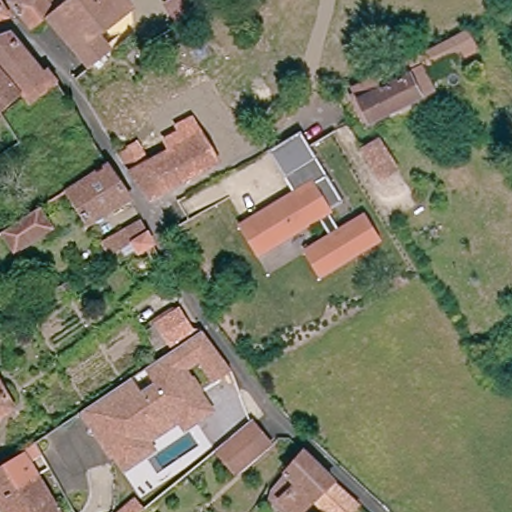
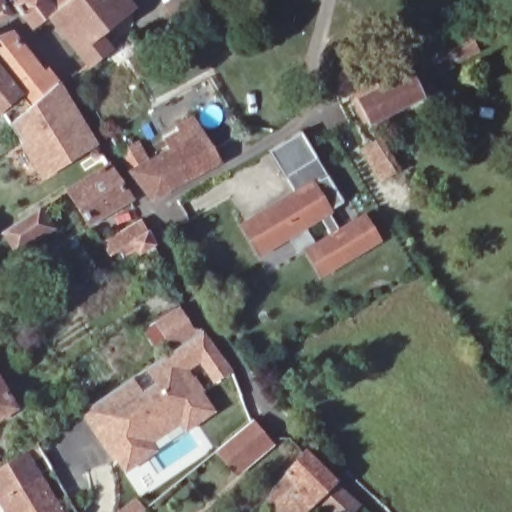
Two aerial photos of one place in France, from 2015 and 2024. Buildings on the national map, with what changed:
unchanged [(65,0),(44,16),(27,30),(14,12),(3,16),(0,17),(0,0),(65,0)]
unchanged [(93,35),(105,50),(85,66),(44,16),(65,0),(121,0),(128,8),(93,35)]
unchanged [(175,24),(163,5),(171,0),(208,0),(209,2),(175,24)]
unchanged [(466,31),(475,49),(466,54),(462,46),(425,65),(409,74),(420,96),(370,121),(352,86),(419,52),(420,55),(466,31)]
unchanged [(10,33),(42,72),(49,67),(60,81),(33,103),(23,91),(0,65),(0,37),(10,33)]
unchanged [(22,92),(0,111),(0,67),(22,92)]
new [(41,178),(10,123),(33,103),(60,81),(97,145),(41,178)]
unchanged [(175,126),(193,117),(218,162),(219,164),(152,200),(131,172),(119,153),(137,144),(141,154),(133,158),(138,168),(185,143),(175,126)]
unchanged [(304,252),(312,248),(328,239),(316,218),(258,251),(242,223),(301,190),(291,173),(283,178),(267,150),(300,132),(316,159),(325,176),(340,203),(324,212),(336,234),(360,220),(374,243),(324,271),(317,275),(304,252)]
unchanged [(400,169),(382,179),(362,148),(380,138),(400,169)]
unchanged [(132,201),(89,226),(66,191),(108,165),(132,201)]
unchanged [(52,228),(15,251),(2,231),(39,208),(52,228)]
unchanged [(139,252),(132,241),(108,255),(101,242),(137,221),(142,223),(147,232),(153,244),(139,252)]
unchanged [(81,289),(60,302),(53,291),(74,278),(81,289)]
unchanged [(181,310),(195,334),(161,358),(145,332),(181,310)]
unchanged [(128,470),(120,459),(117,461),(100,438),(82,412),(110,393),(126,383),(129,381),(140,396),(157,384),(146,369),(202,332),(230,369),(232,371),(216,383),(198,359),(181,372),(189,384),(194,381),(202,393),(198,396),(207,408),(210,412),(188,428),(185,424),(150,449),(153,453),(128,470)]
unchanged [(0,426),(0,395),(14,417),(0,426)]
unchanged [(270,445),(235,474),(216,450),(251,422),(270,445)]
unchanged [(0,508),(0,458),(18,447),(21,453),(31,469),(56,512),(2,512),(0,508)]
unchanged [(273,500),(268,495),(270,486),(286,469),(285,468),(304,448),(333,476),(335,478),(358,500),(346,512),(329,512),(313,496),(297,512),(296,512),(294,510),(292,512),(285,512),(273,500)]
unchanged [(109,512),(129,495),(138,506),(132,512),(109,512)]

